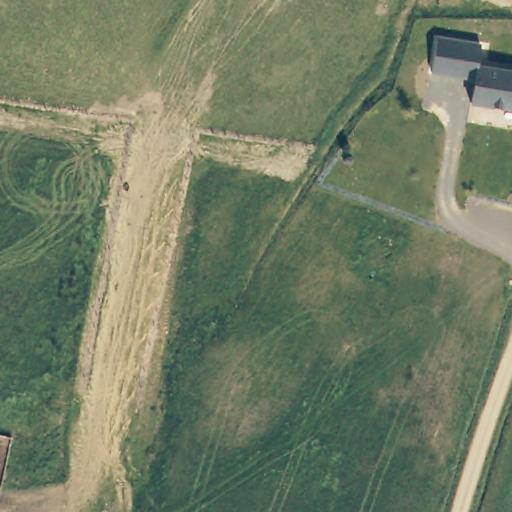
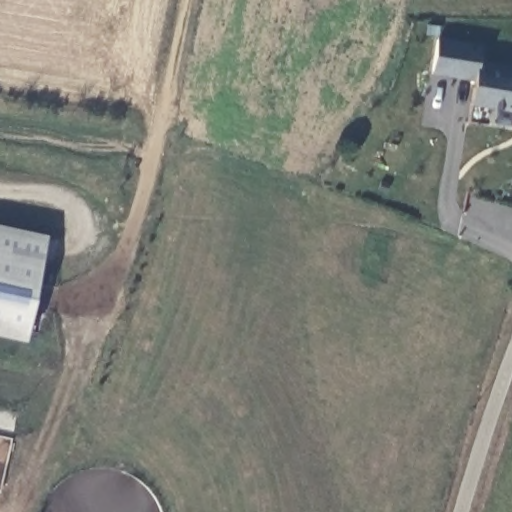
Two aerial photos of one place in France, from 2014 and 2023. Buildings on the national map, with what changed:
unchanged [(482,42),(480,60),(443,55),(445,38),(482,42)]
unchanged [(486,70),(512,74),(512,111),(479,105),(486,70)]
new [(25,342),(0,337),(0,225),(49,235),(25,342)]

